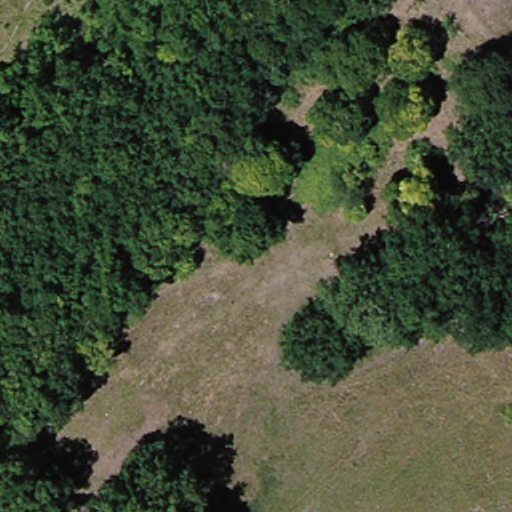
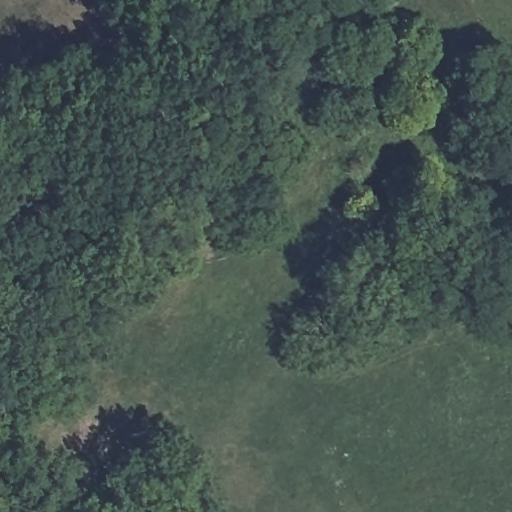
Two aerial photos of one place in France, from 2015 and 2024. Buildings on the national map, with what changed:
[]

